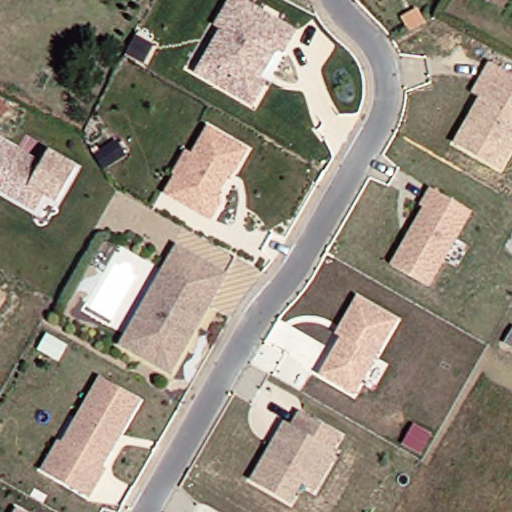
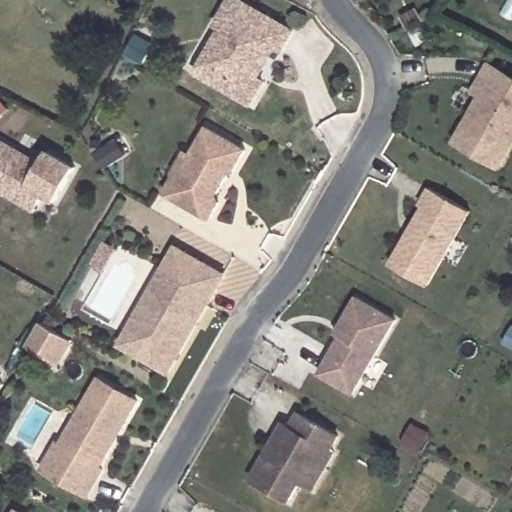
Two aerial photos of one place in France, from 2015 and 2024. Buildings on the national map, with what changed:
unchanged [(297,29),(284,57),(278,52),(263,77),(269,81),(252,108),(194,75),(220,29),(214,26),(229,0),(246,0),(297,29)]
unchanged [(479,97),(471,91),(490,61),(512,74),(512,149),(502,168),(453,142),(479,97)]
unchanged [(172,173),(183,151),(195,158),(209,130),(249,151),(237,173),(234,172),(217,202),(222,205),(214,221),(169,197),(177,181),(172,173)]
unchanged [(22,197),(0,183),(0,132),(45,160),(52,148),(62,154),(80,165),(59,198),(46,190),(37,206),(35,205),(22,197)]
unchanged [(422,206),(418,203),(427,187),(471,210),(430,285),(388,263),(422,206)]
unchanged [(180,248),(230,276),(174,374),(124,347),(137,325),(154,295),(180,248)]
unchanged [(400,321),(357,395),(323,376),(345,338),(340,335),(344,327),(361,299),(400,321)]
new [(40,327),(70,345),(57,366),(27,349),(40,327)]
unchanged [(57,441),(60,443),(99,376),(137,398),(99,464),(102,466),(87,493),(56,475),(42,467),(57,441)]
new [(0,385),(0,382),(1,383),(0,385)]
unchanged [(313,487),(301,479),(290,498),(252,477),(272,442),(284,421),(291,425),(299,411),(338,433),(331,447),(335,449),(313,487)]

